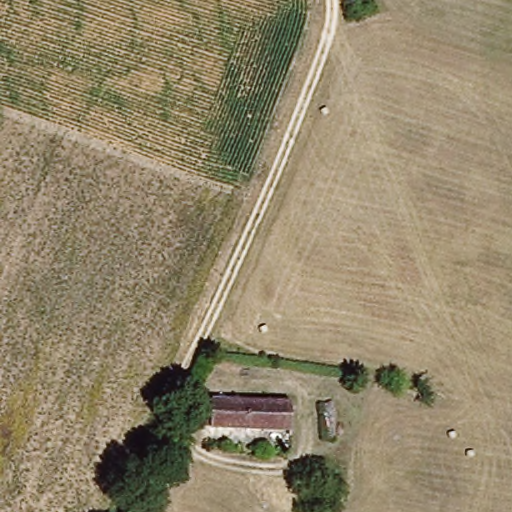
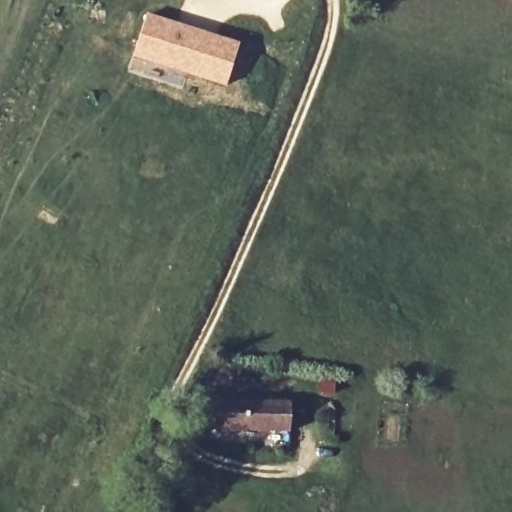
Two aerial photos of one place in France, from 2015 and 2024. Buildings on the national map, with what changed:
new [(145,11),(240,42),(226,87),(186,75),(182,89),(126,71),(130,56),(145,11)]
unchanged [(294,436),(205,433),(206,414),(217,415),(217,401),(296,406),(294,436)]

